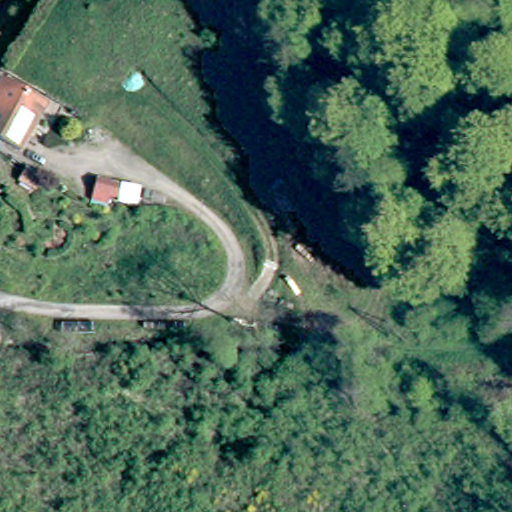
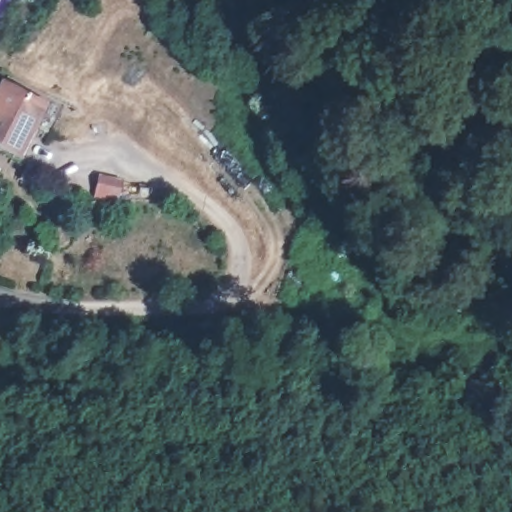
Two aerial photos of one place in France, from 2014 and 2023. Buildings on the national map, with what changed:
unchanged [(0,132),(0,91),(5,83),(47,105),(23,149),(0,132)]

